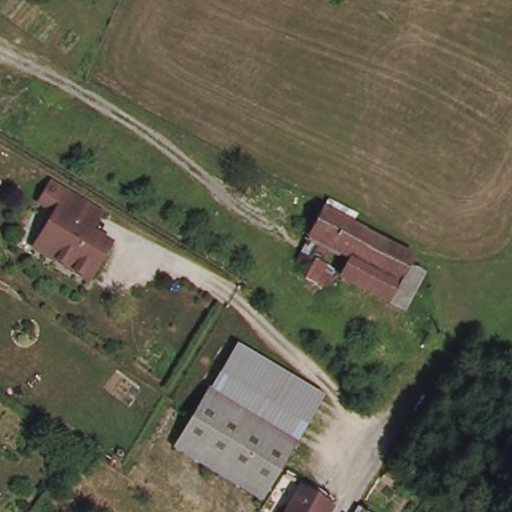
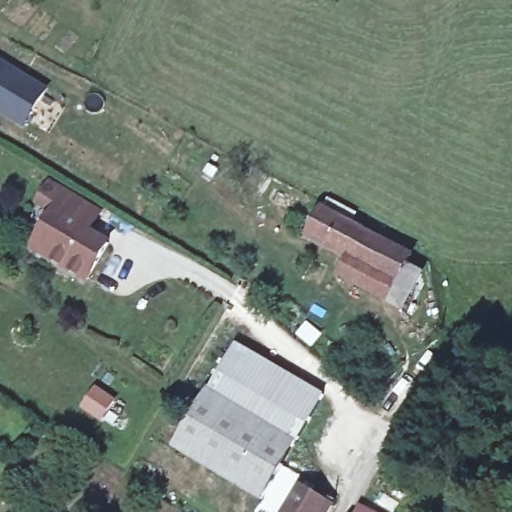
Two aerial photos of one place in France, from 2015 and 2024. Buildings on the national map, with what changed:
new [(48,86),(22,127),(0,113),(0,56),(48,86)]
unchanged [(37,237),(51,212),(35,202),(47,184),(79,202),(96,213),(85,231),(105,244),(83,280),(45,256),(30,247),(37,237)]
unchanged [(426,262),(404,312),(338,282),(348,261),(307,240),(322,205),(426,262)]
unchanged [(337,269),(328,288),(312,282),(320,261),(337,269)]
unchanged [(222,367),(226,369),(246,347),(323,393),(295,440),(211,388),(222,367)]
unchanged [(295,440),(279,465),(258,497),(173,442),(191,411),(206,385),(211,388),(295,440)]
unchanged [(287,512),(305,487),(333,506),(329,512),(287,512)]
new [(377,512),(354,512),(360,502),(377,512)]

